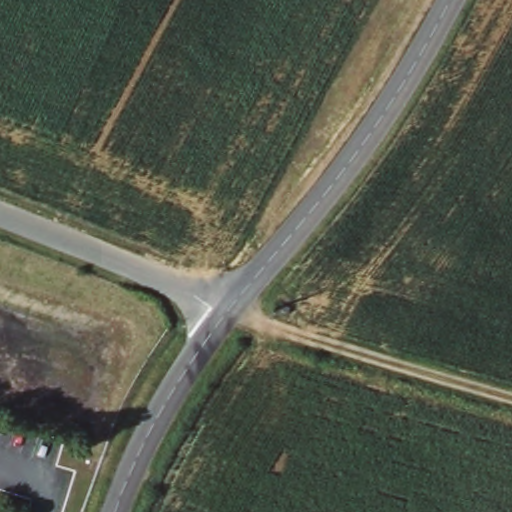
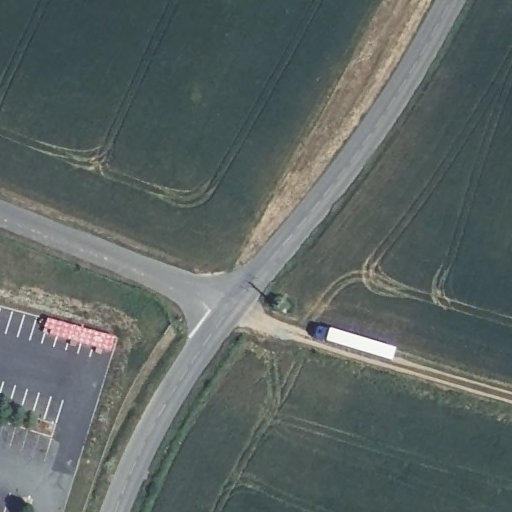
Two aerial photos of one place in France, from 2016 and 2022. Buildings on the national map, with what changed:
[]

